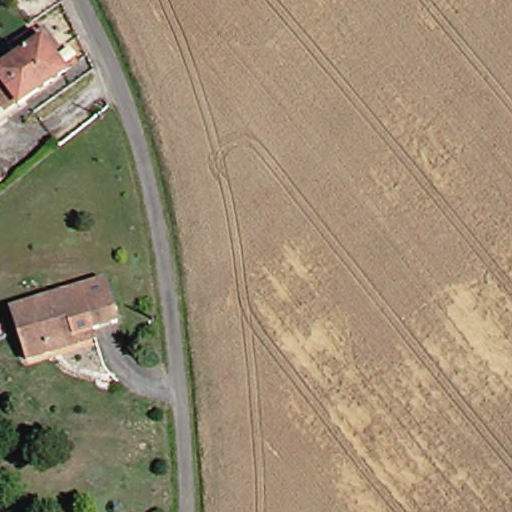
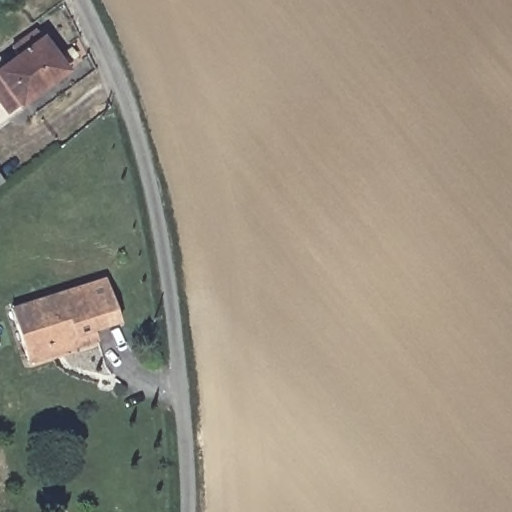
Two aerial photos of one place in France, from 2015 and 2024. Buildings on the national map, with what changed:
unchanged [(10,68),(23,58),(12,43),(34,26),(70,72),(34,100),(17,113),(0,126),(0,75),(10,68)]
unchanged [(0,184),(0,174),(5,180),(0,184)]
unchanged [(53,355),(29,364),(11,310),(108,281),(121,323),(97,331),(98,342),(53,355)]

